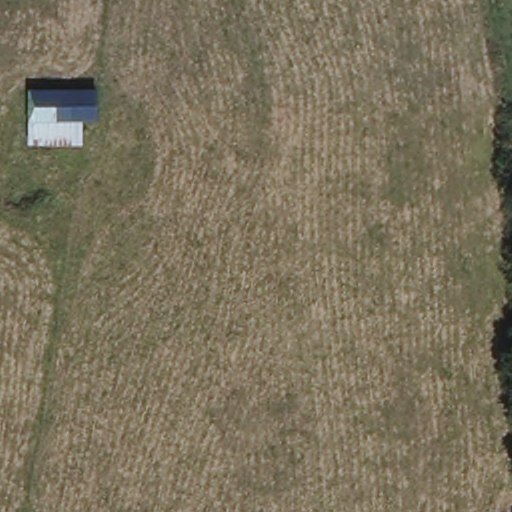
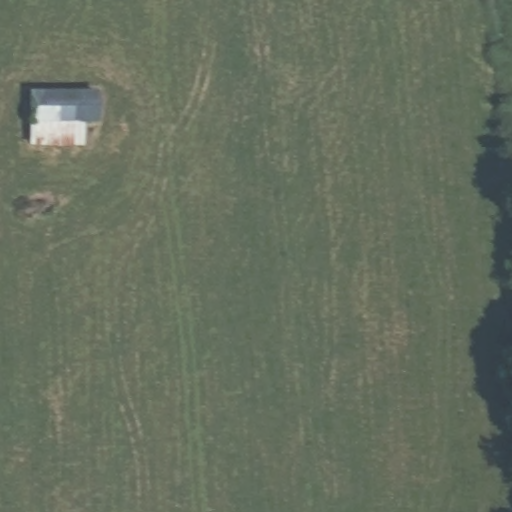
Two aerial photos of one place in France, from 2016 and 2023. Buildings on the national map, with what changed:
unchanged [(29,85),(97,87),(97,124),(86,124),(84,144),(28,144),(29,85)]

